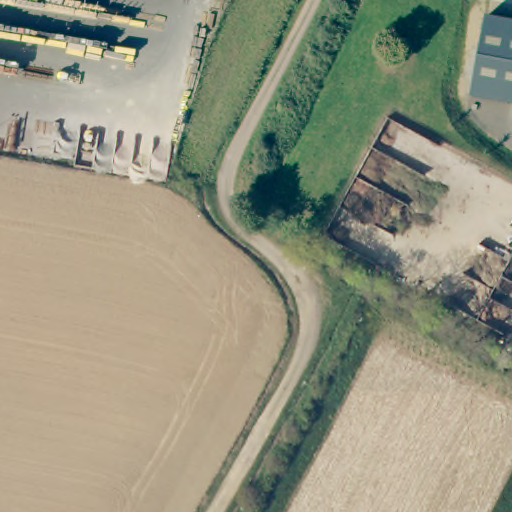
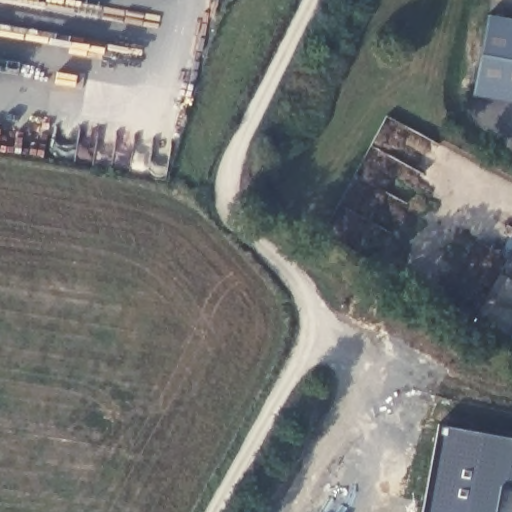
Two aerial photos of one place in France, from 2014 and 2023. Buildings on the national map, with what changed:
unchanged [(475,97),(486,17),(512,22),(512,104),(475,97)]
new [(406,512),(419,431),(512,446),(512,512),(406,512)]

